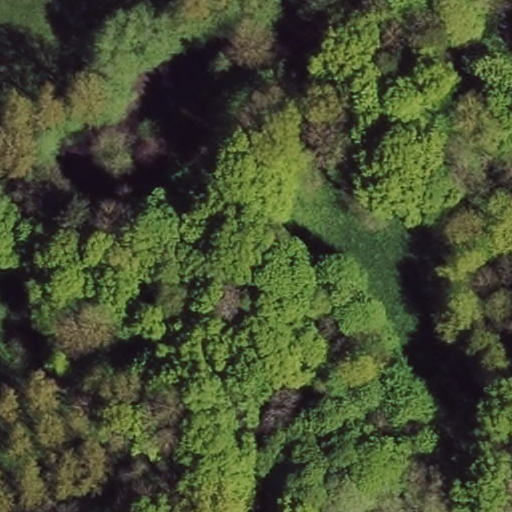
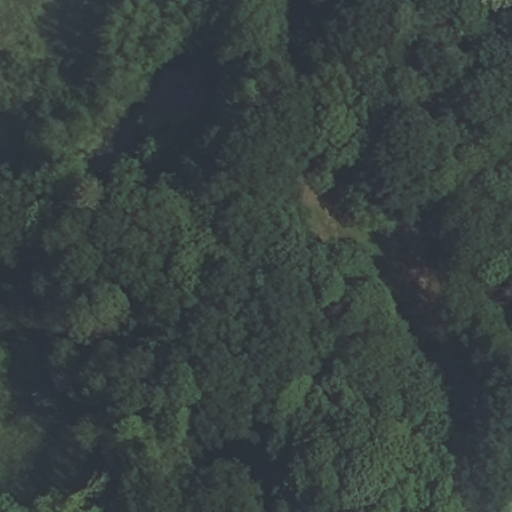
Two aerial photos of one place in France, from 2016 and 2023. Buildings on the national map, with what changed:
unchanged [(92,349),(101,378),(54,394),(44,363),(92,349)]

